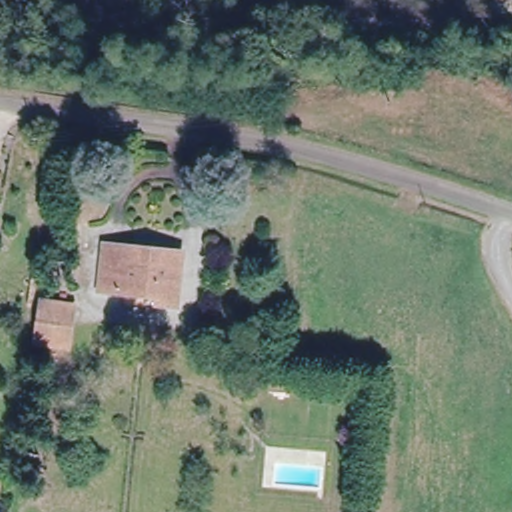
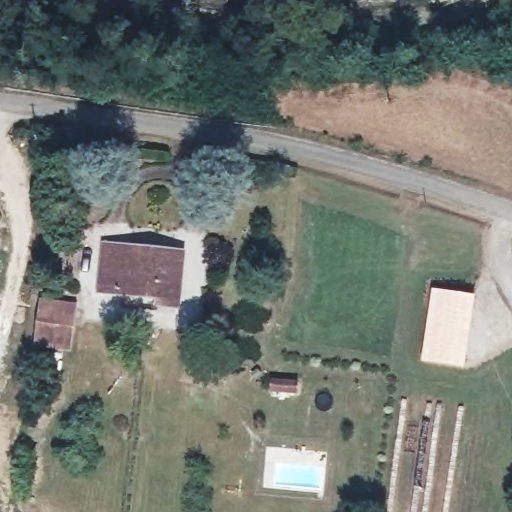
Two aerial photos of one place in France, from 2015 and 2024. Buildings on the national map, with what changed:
unchanged [(95,284),(101,241),(137,246),(158,249),(176,251),(171,302),(150,300),(150,307),(119,302),(120,288),(95,284)]
new [(431,286),(475,294),(464,367),(420,360),(431,286)]
unchanged [(40,300),(70,303),(65,346),(35,342),(40,300)]

